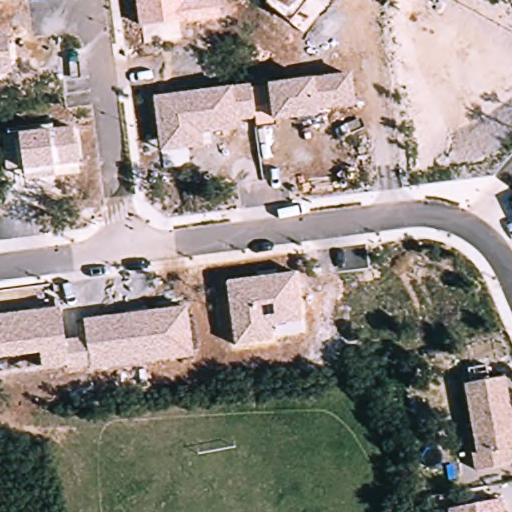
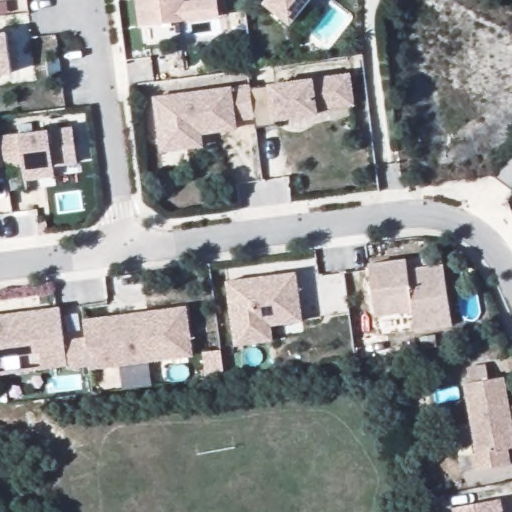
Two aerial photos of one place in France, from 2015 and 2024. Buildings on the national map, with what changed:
unchanged [(219,17),(140,25),(137,0),(216,0),(219,17)]
new [(308,4),(318,14),(303,35),(290,27),(262,6),(266,0),(311,0),(308,4)]
unchanged [(10,72),(0,73),(0,32),(7,31),(10,72)]
unchanged [(203,134),(203,146),(162,149),(155,96),(232,87),(252,84),(254,104),(271,101),(269,83),(315,76),(350,72),(354,105),(318,109),(318,117),(276,122),(277,125),(257,127),(256,117),(234,123),(235,129),(203,134)]
unchanged [(72,129),(77,159),(54,164),(52,176),(26,181),(24,168),(6,171),(2,137),(19,133),(47,130),(72,129)]
new [(6,171),(0,172),(0,137),(2,137),(6,171)]
new [(411,312),(374,317),(368,265),(405,261),(407,271),(444,266),(454,328),(413,333),(411,312)]
unchanged [(273,339),(235,345),(224,281),(296,274),(302,319),(271,324),(273,339)]
unchanged [(194,355),(91,368),(67,371),(66,363),(0,373),(0,314),(59,307),(64,339),(86,335),(84,319),(187,306),(194,355)]
unchanged [(505,405),(512,404),(512,417),(508,418),(512,436),(512,446),(505,448),(509,464),(476,471),(472,454),(477,453),(462,385),(499,376),(505,405)]
unchanged [(450,509),(496,499),(499,512),(445,512),(445,510),(450,509)]

